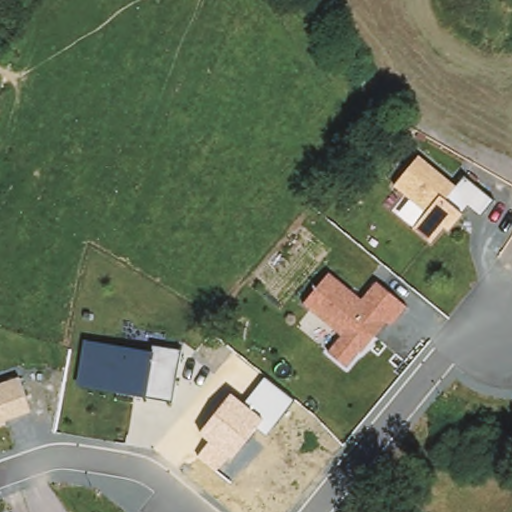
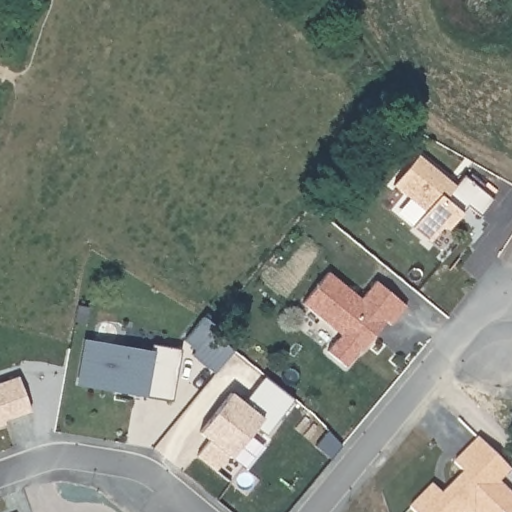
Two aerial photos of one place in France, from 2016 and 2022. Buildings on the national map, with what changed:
unchanged [(455,187),(465,177),(491,200),(479,215),(470,207),(462,217),(447,237),(441,233),(435,241),(432,245),(413,231),(427,215),(394,188),(421,158),(455,187)]
unchanged [(400,307),(347,366),(346,366),(329,352),(341,337),(303,307),(330,277),(360,300),(375,286),(400,307)]
unchanged [(154,351),(155,345),(182,350),(173,401),(147,395),(77,385),(84,340),(154,351)]
unchanged [(31,411),(5,423),(0,425),(0,383),(18,377),(31,411)]
unchanged [(198,455),(210,440),(200,433),(232,393),(245,403),(266,377),(294,400),(267,435),(258,426),(232,460),(228,456),(217,470),(198,455)]
new [(512,473),(503,483),(512,492),(512,512),(415,512),(411,508),(434,483),(444,493),(464,471),(455,463),(479,437),(512,470),(512,473)]

